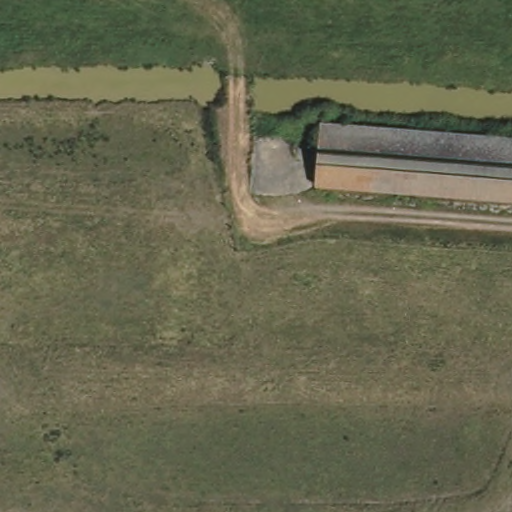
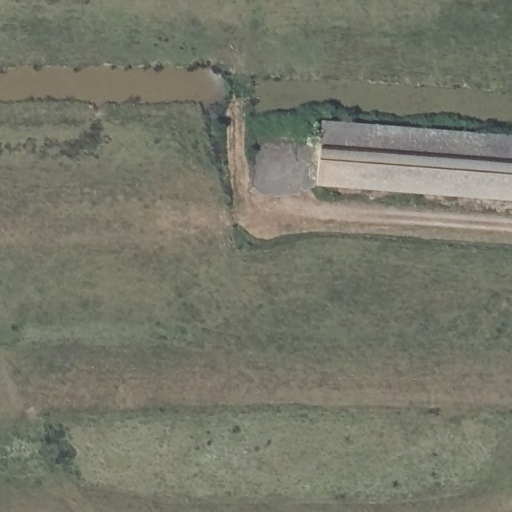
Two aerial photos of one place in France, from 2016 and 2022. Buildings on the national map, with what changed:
unchanged [(320,112),(512,130),(512,187),(314,169),(320,112)]

